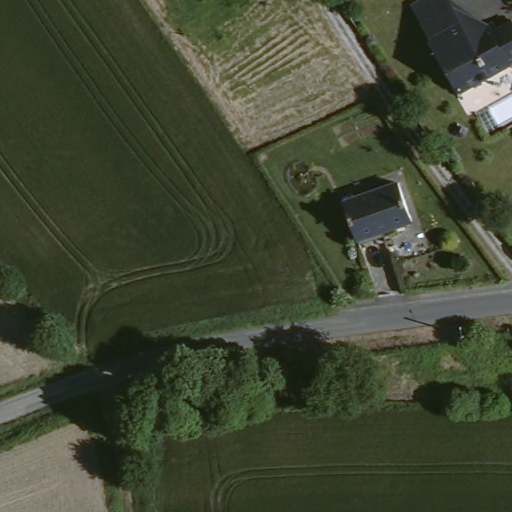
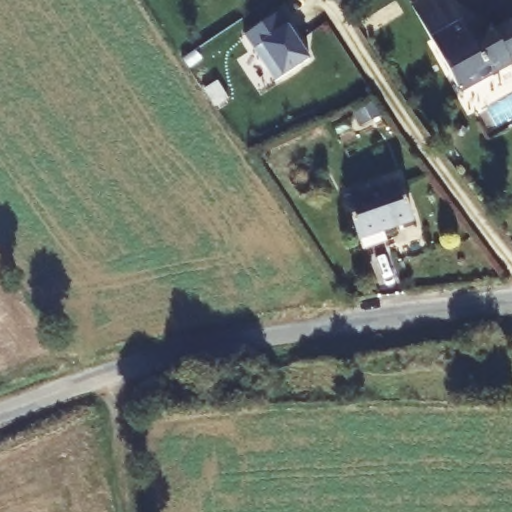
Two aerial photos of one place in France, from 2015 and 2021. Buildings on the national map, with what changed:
unchanged [(458,26),(473,29),(499,9),(512,26),(512,59),(466,94),(458,92),(412,30),(442,6),(458,26)]
new [(277,13),(286,26),(290,23),(301,39),(298,41),(309,58),(275,81),(244,35),(277,13)]
new [(512,118),(496,129),(484,113),(512,91),(512,118)]
unchanged [(337,204),(391,184),(406,225),(352,245),(337,204)]

